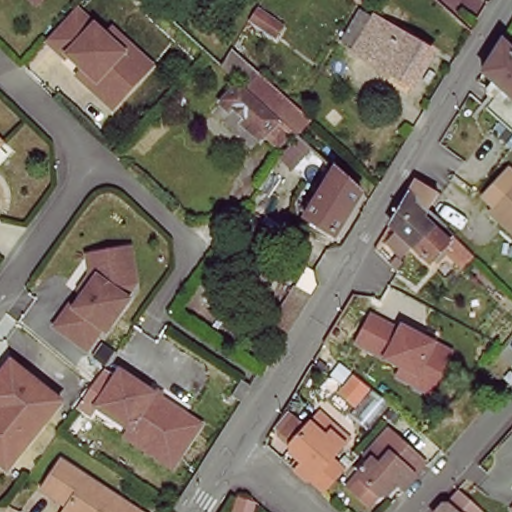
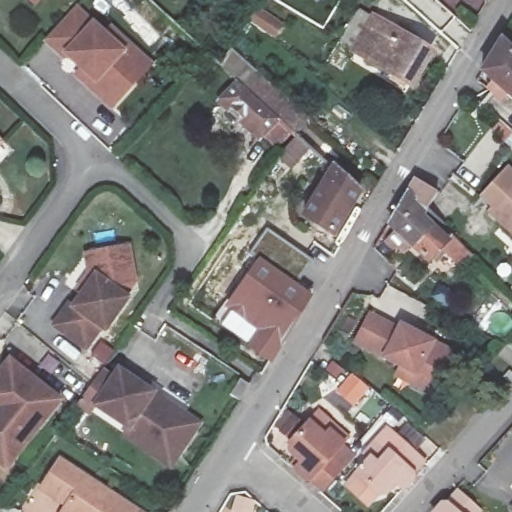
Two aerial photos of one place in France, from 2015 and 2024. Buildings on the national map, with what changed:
unchanged [(67,52),(65,55),(45,37),(76,5),(105,32),(111,26),(130,43),(151,63),(138,77),(112,106),(89,84),(76,73),(82,66),(67,52)]
unchanged [(249,19),(257,6),(281,22),(273,35),(249,19)]
unchanged [(380,25),(437,60),(416,94),(359,60),(361,57),(348,50),(366,21),(378,28),(380,25)]
unchanged [(512,99),(492,81),(512,50),(512,99)]
unchanged [(274,152),(261,140),(222,103),(240,86),(279,122),(291,134),(274,152)]
unchanged [(3,137),(0,141),(0,134),(3,137)]
unchanged [(290,172),(279,162),(297,141),(308,151),(290,172)]
unchanged [(333,241),(304,221),(334,172),(360,196),(333,241)]
unchanged [(388,247),(399,235),(390,228),(410,196),(420,179),(440,196),(428,213),(423,218),(448,243),(452,239),(473,259),(462,271),(442,253),(430,265),(412,248),(402,259),(388,247)]
unchanged [(512,232),(495,216),(512,199),(512,232)]
new [(251,263),(245,259),(265,232),(312,264),(296,291),(302,295),(261,367),(238,354),(251,333),(220,313),(251,263)]
unchanged [(70,305),(73,308),(97,276),(91,254),(120,247),(130,280),(136,284),(126,298),(129,300),(105,332),(101,329),(85,350),(53,326),(70,305)]
demolished [(295,288),(310,297),(289,330),(274,321),(295,288)]
unchanged [(392,377),(396,368),(382,362),(355,345),(375,309),(403,324),(441,344),(459,353),(436,396),(392,377)]
unchanged [(9,357),(58,397),(3,464),(0,462),(0,369),(9,357)]
unchanged [(95,406),(118,370),(200,421),(178,454),(172,465),(125,435),(130,428),(95,406)]
unchanged [(227,396),(239,403),(243,406),(231,427),(226,424),(215,417),(227,396)]
unchanged [(293,472),(300,463),(290,455),(290,443),(317,409),(350,439),(335,460),(344,468),(322,493),(293,472)]
unchanged [(342,489),(353,472),(390,427),(430,464),(407,492),(398,484),(387,499),(381,494),(369,510),(342,489)]
unchanged [(68,503),(42,485),(62,456),(141,508),(138,512),(62,512),(66,505),(68,503)]
unchanged [(234,489),(235,488),(245,480),(255,491),(252,493),(241,502),(233,491),(234,489)]
unchanged [(435,512),(440,507),(441,509),(455,495),(474,512),(435,512)]
unchanged [(512,508),(512,512),(511,512),(510,511),(512,508)]

